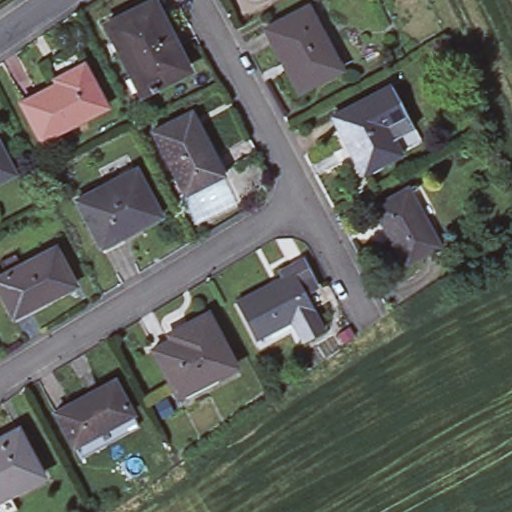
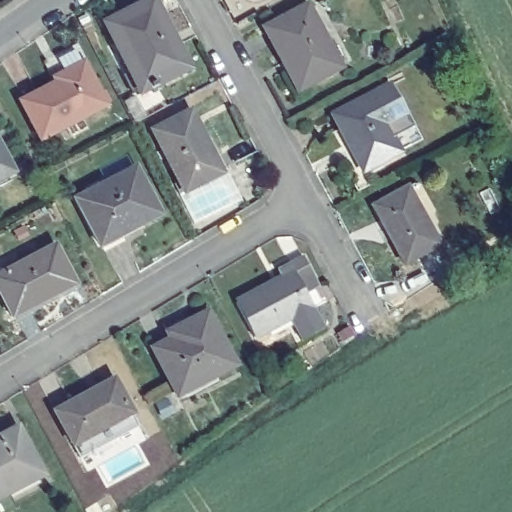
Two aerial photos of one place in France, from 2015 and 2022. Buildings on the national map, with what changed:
unchanged [(152,2),(186,68),(156,84),(157,87),(151,90),(149,87),(142,91),(108,25),(152,2)]
unchanged [(309,6),(341,67),(304,86),(291,59),(286,61),(268,27),(309,6)]
unchanged [(69,78),(68,74),(87,64),(108,105),(43,139),(24,101),(69,78)]
unchanged [(353,175),(324,119),(383,89),(412,145),(389,156),(353,175)]
unchanged [(192,111),(223,173),(186,192),(155,130),(192,111)]
unchanged [(4,135),(22,170),(0,180),(0,137),(4,135)]
unchanged [(136,169),(159,215),(100,245),(76,199),(136,169)]
unchanged [(409,189),(439,249),(406,265),(375,206),(409,189)]
unchanged [(58,248),(76,287),(14,315),(0,284),(0,278),(58,248)]
unchanged [(277,270),(304,255),(319,283),(305,291),(325,328),(301,341),(289,318),(255,336),(236,302),(281,278),(277,270)]
unchanged [(184,338),(181,330),(209,315),(238,370),(181,400),(156,353),(184,338)]
unchanged [(136,420),(78,451),(71,439),(53,406),(112,373),(130,407),(136,420)]
unchanged [(24,427),(45,475),(0,494),(0,438),(24,427)]

